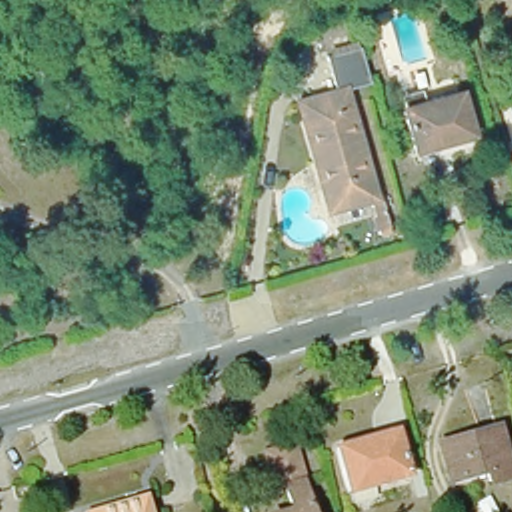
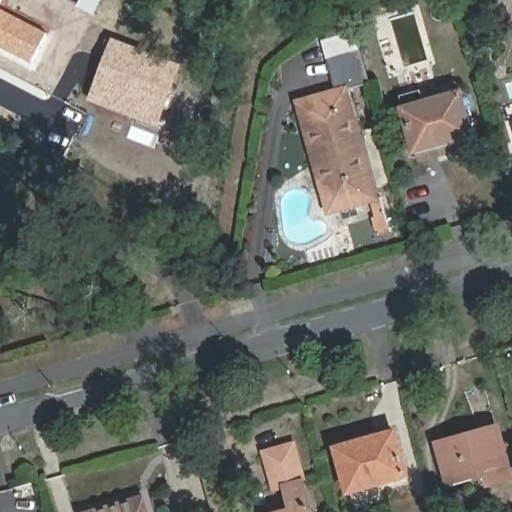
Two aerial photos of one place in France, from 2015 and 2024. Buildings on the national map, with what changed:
new [(0,2),(0,0),(1,0),(0,2)]
new [(31,62),(0,47),(0,7),(47,32),(31,62)]
new [(88,100),(112,37),(182,64),(159,128),(88,100)]
unchanged [(368,85),(346,92),(376,202),(327,215),(297,105),(340,94),(331,60),(360,52),(368,85)]
unchanged [(472,132),(415,149),(403,106),(459,90),(472,132)]
unchanged [(487,482),(485,470),(447,480),(437,441),(497,425),(511,475),(487,482)]
unchanged [(346,492),(334,446),(394,430),(406,475),(346,492)]
unchanged [(293,482),(282,485),(272,450),(301,442),(311,477),(320,512),(302,512),(301,507),(293,482)]
unchanged [(148,512),(83,512),(144,495),(148,512)]
unchanged [(302,512),(283,512),(301,507),(302,512)]

